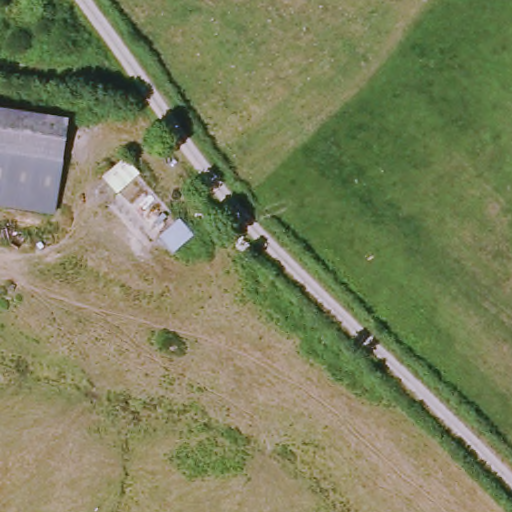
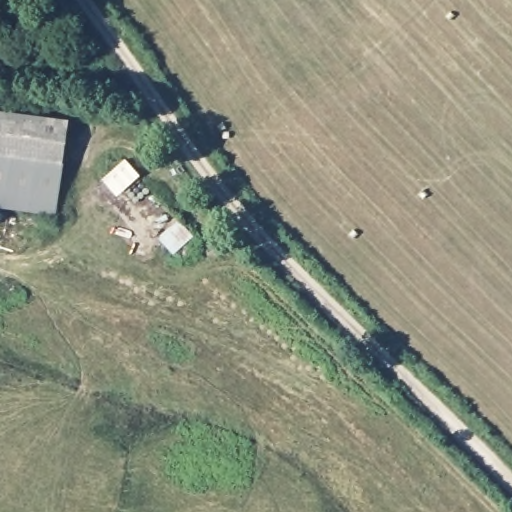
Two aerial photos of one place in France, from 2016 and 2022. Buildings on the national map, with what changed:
unchanged [(58,216),(0,208),(0,108),(65,117),(58,216)]
unchanged [(125,159),(139,174),(120,191),(106,176),(125,159)]
unchanged [(179,220),(192,235),(174,252),(160,236),(179,220)]

